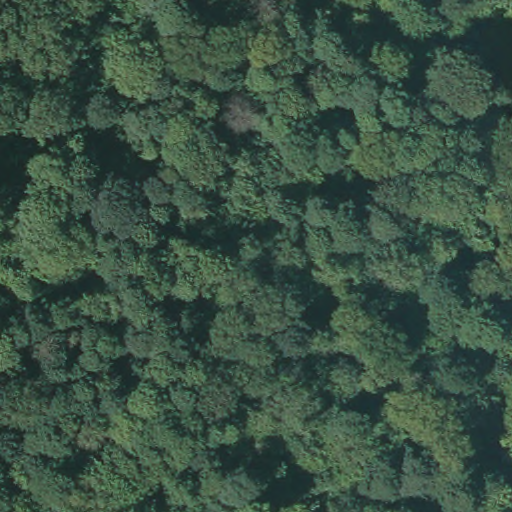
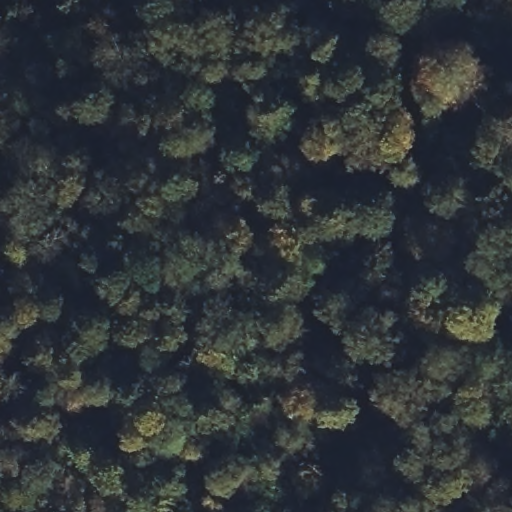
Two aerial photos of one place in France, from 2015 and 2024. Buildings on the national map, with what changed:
[]

